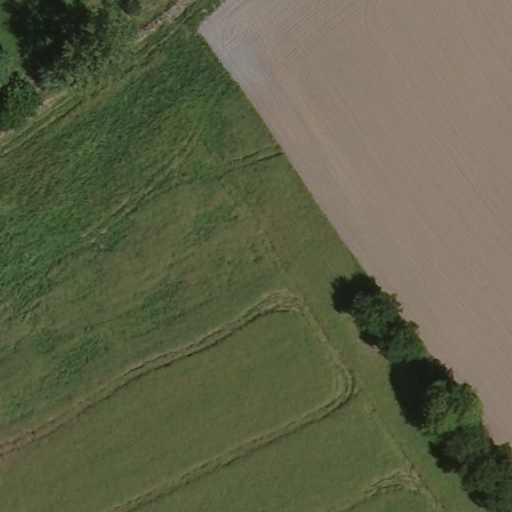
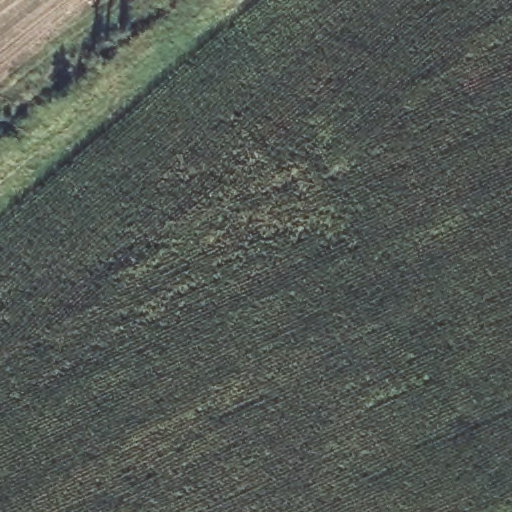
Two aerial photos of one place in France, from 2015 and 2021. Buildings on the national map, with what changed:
[]

